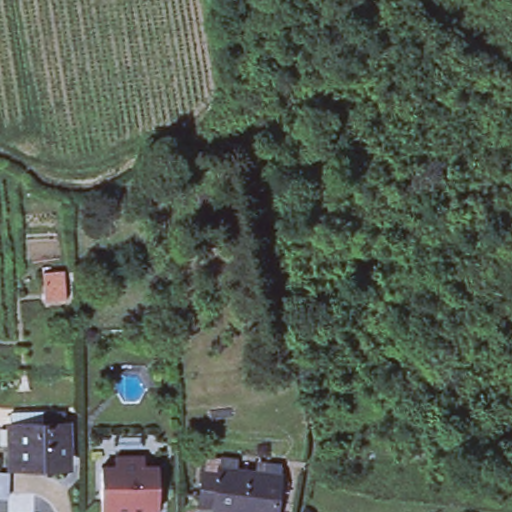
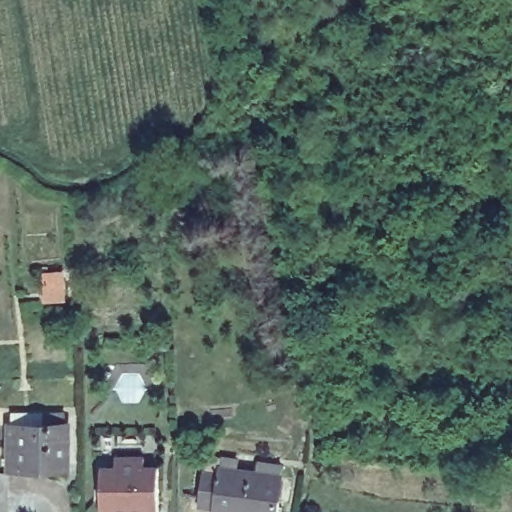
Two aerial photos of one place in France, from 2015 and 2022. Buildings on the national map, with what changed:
unchanged [(65,294),(46,296),(43,269),(63,267),(65,294)]
unchanged [(14,418),(25,418),(35,418),(35,404),(51,404),(51,407),(69,407),(69,417),(72,417),(70,460),(25,460),(14,459),(14,418)]
unchanged [(107,502),(95,501),(98,457),(112,458),(112,449),(142,451),(142,461),(155,462),(152,506),(139,505),(138,512),(107,512),(107,502)]
unchanged [(215,508),(215,505),(200,503),(205,465),(220,467),(222,455),(238,456),(237,468),(256,470),(257,464),(282,468),(280,473),(275,512),(248,512),(215,508)]
unchanged [(13,465),(12,492),(0,492),(0,465),(13,465)]

